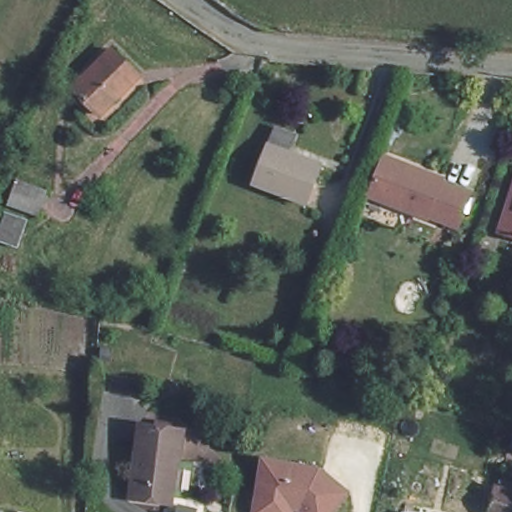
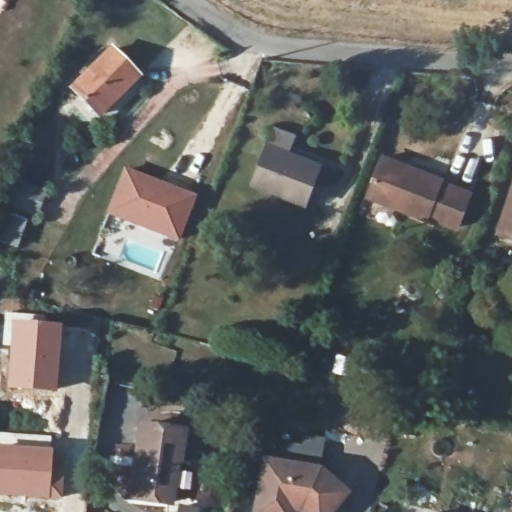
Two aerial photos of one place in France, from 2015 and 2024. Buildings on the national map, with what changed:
unchanged [(108,48),(134,75),(95,114),(69,86),(108,48)]
unchanged [(324,166),(309,206),(256,186),(271,146),(324,166)]
unchanged [(444,180),(442,184),(472,196),(461,227),(430,215),(429,219),(372,196),(387,158),(444,180)]
new [(106,213),(123,168),(195,196),(177,241),(106,213)]
unchanged [(14,181),(43,191),(35,212),(6,203),(14,181)]
unchanged [(496,230),(512,182),(512,236),(496,230)]
unchanged [(19,220),(10,244),(0,240),(0,220),(3,213),(19,220)]
new [(8,318),(61,324),(55,392),(4,390),(8,318)]
unchanged [(188,428),(184,455),(177,455),(171,502),(133,496),(144,421),(188,428)]
new [(61,501),(0,497),(0,432),(52,435),(52,447),(51,470),(64,470),(61,501)]
unchanged [(349,492),(333,512),(251,512),(261,457),(319,466),(349,492)]
unchanged [(484,512),(489,490),(512,494),(512,512),(484,512)]

